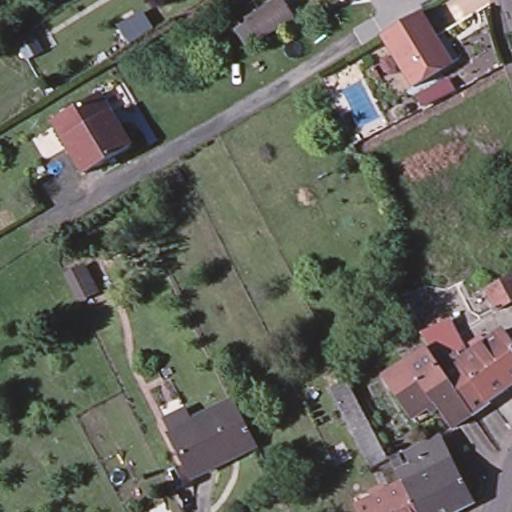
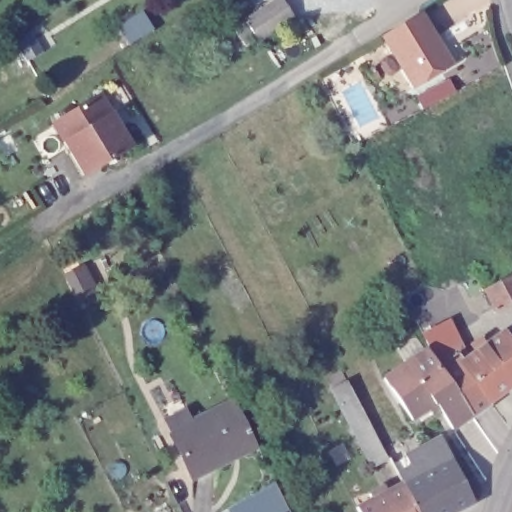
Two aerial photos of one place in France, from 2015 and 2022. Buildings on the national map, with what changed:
unchanged [(245,16),(271,0),(282,0),(291,14),(256,35),(245,16)]
unchanged [(447,63),(432,72),(412,84),(381,32),(406,17),(419,8),(435,35),(451,61),(447,63)]
unchanged [(419,91),(436,82),(446,77),(453,89),(442,94),(425,103),(419,91)]
unchanged [(96,95),(108,115),(115,126),(128,147),(85,173),(75,158),(53,123),(96,95)]
unchanged [(67,275),(80,267),(93,288),(79,296),(67,275)]
unchanged [(496,308),(484,286),(489,284),(512,272),(512,300),(496,308)]
unchanged [(436,359),(423,332),(442,323),(447,333),(452,331),(454,337),(450,339),(457,352),(461,358),(489,400),(471,412),(453,426),(443,413),(434,401),(413,416),(390,385),(384,376),(406,361),(426,347),(436,359)]
unchanged [(461,358),(501,330),(512,346),(512,384),(489,400),(461,358)]
unchanged [(331,386),(346,379),(389,458),(373,466),(331,386)]
unchanged [(164,424),(185,414),(191,425),(233,403),(256,447),(193,479),(170,435),(164,424)]
unchanged [(403,482),(398,472),(407,468),(412,477),(417,474),(408,454),(419,448),(442,436),(452,457),(474,501),(454,512),(358,512),(355,505),(401,482),(403,482)]
new [(290,511),(288,512),(230,512),(228,509),(277,482),(290,511)]

